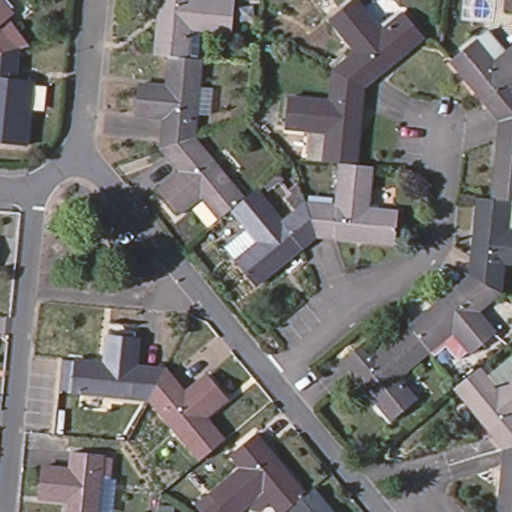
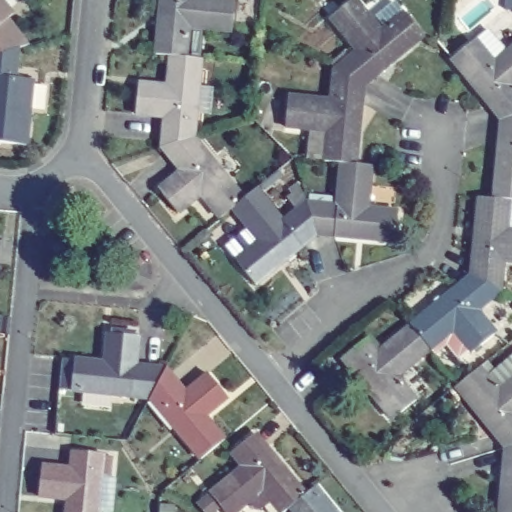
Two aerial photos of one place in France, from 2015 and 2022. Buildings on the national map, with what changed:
unchanged [(6,21),(27,46),(18,50),(0,55),(0,0),(1,0),(13,15),(6,21)]
unchanged [(203,0),(235,3),(232,33),(190,29),(187,59),(170,58),(157,56),(163,0),(203,0)]
unchanged [(357,52),(330,20),(353,0),(354,0),(382,33),(404,14),(424,36),(363,87),(334,72),(357,52)]
unchanged [(506,15),(508,0),(512,0),(512,15),(506,15)]
unchanged [(502,121),(452,61),(475,42),(487,31),(507,54),(512,49),(512,118),(502,121)]
unchanged [(33,81),(27,146),(0,143),(0,55),(18,50),(15,80),(33,81)]
unchanged [(164,149),(165,119),(137,116),(140,86),(169,88),(170,58),(187,59),(202,61),(195,139),(164,149)]
unchanged [(329,133),(285,129),(288,99),(332,102),(334,72),(363,87),(355,165),(342,164),(326,163),(329,133)]
unchanged [(502,121),(512,118),(512,201),(510,201),(495,200),(502,121)]
unchanged [(232,209),(220,219),(202,197),(180,215),(160,191),(182,173),(164,149),(195,139),(245,199),(232,209)]
unchanged [(355,165),(372,167),(367,211),(398,213),(395,244),(316,237),(307,205),(337,208),(342,164),(355,165)]
unchanged [(248,229),(232,209),(245,199),(255,191),(283,224),(307,205),(316,237),(256,286),(237,262),(239,261),(227,247),(248,229)]
unchanged [(507,232),(512,232),(512,263),(504,263),(502,292),(472,277),(480,198),(495,200),(510,201),(510,204),(507,232)]
unchanged [(416,402),(392,421),(342,360),(366,341),(377,355),(410,327),(472,277),(502,292),(478,312),(497,334),(472,355),(470,351),(457,360),(447,347),(435,356),(430,351),(397,378),(416,402)]
unchanged [(150,400),(73,392),(76,362),(106,364),(109,336),(139,339),(137,367),(165,371),(150,400)]
unchanged [(502,448),(450,389),(454,385),(475,368),(495,392),(512,377),(512,445),(502,448)]
unchanged [(202,461),(150,400),(165,371),(185,394),(209,376),(228,400),(205,419),(224,442),(202,461)]
unchanged [(263,492),(238,512),(224,512),(211,496),(244,468),(232,455),(255,435),(305,496),(290,508),(285,512),(280,512),(263,492)]
unchanged [(502,448),(512,445),(512,512),(496,512),(502,448)]
unchanged [(69,501),(40,498),(44,469),(72,471),(74,453),(104,456),(98,512),(68,512),(69,501)]
unchanged [(305,496),(314,489),(332,512),(293,512),(290,508),(305,496)]

